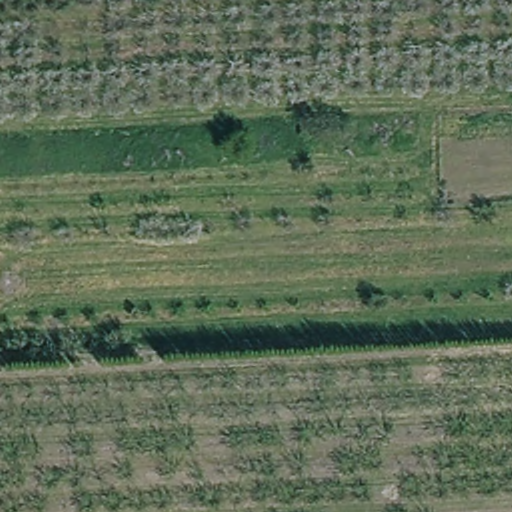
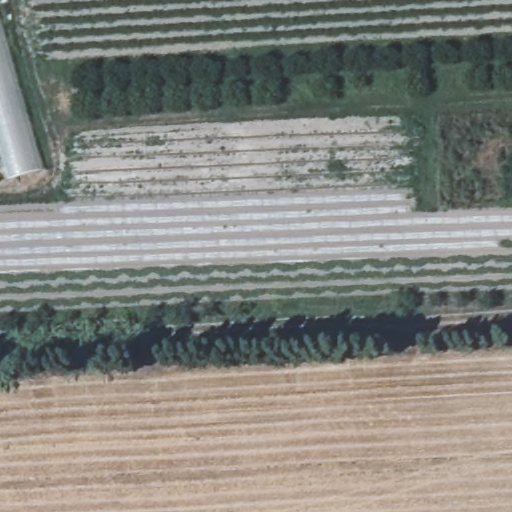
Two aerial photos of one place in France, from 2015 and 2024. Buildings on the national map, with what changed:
new [(0,18),(43,172),(9,181),(0,150),(0,18)]

